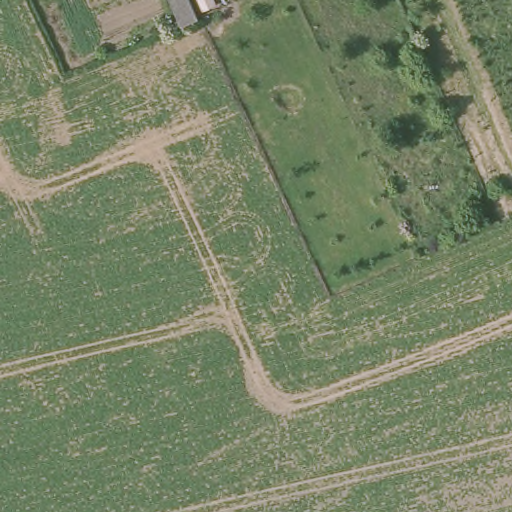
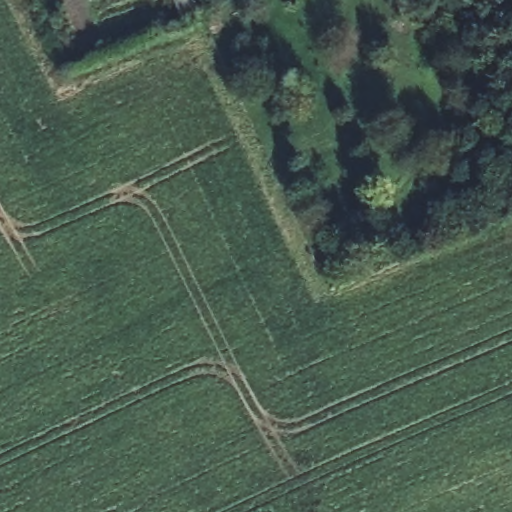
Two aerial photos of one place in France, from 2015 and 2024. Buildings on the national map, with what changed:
unchanged [(184,22),(173,0),(193,0),(200,16),(184,22)]

